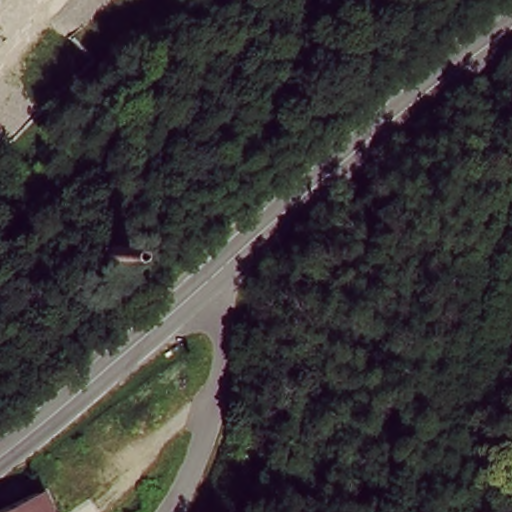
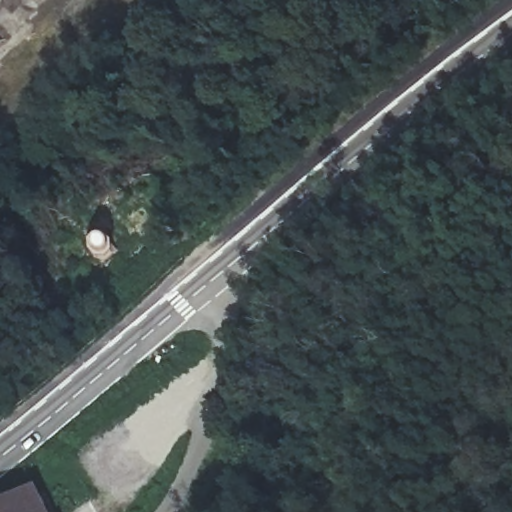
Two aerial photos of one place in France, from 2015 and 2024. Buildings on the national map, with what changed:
unchanged [(43,512),(0,512),(0,506),(33,491),(43,512)]

